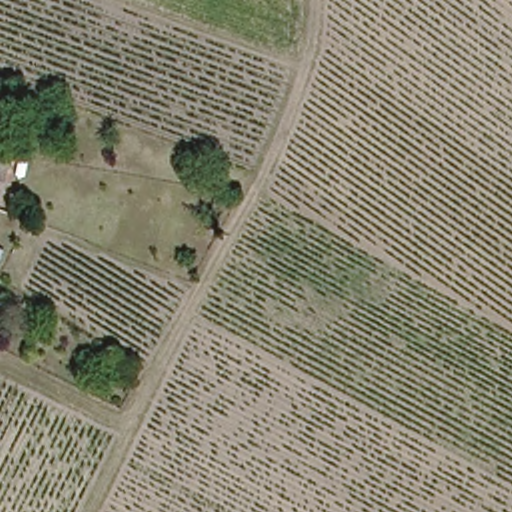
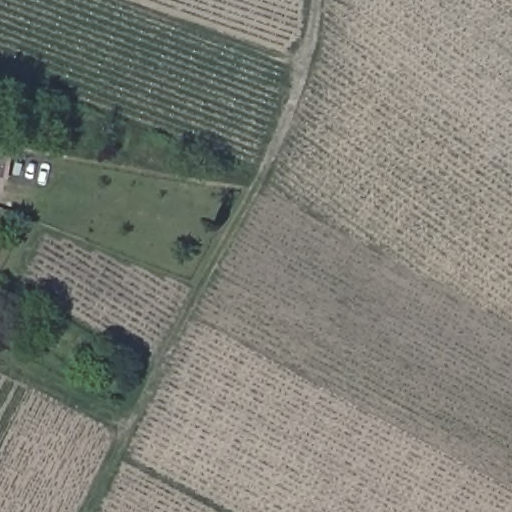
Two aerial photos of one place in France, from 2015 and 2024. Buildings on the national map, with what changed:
unchanged [(0,176),(0,147),(22,151),(19,179),(0,176)]

